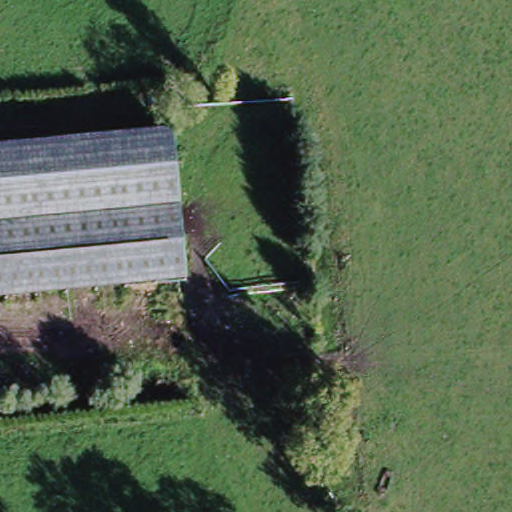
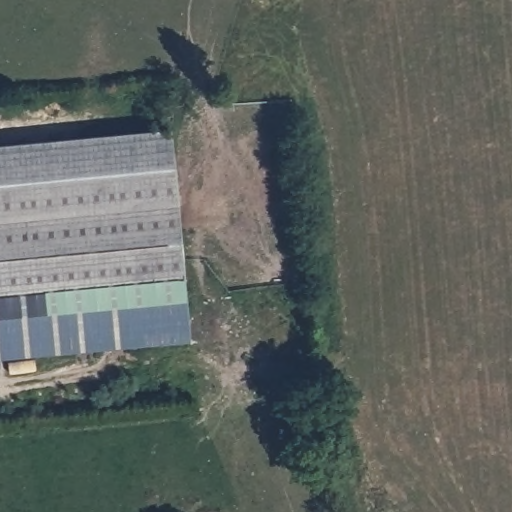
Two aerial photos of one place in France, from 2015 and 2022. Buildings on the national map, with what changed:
unchanged [(164,125),(185,274),(0,300),(0,149),(164,125)]
new [(187,300),(192,344),(0,363),(0,320),(187,300)]

